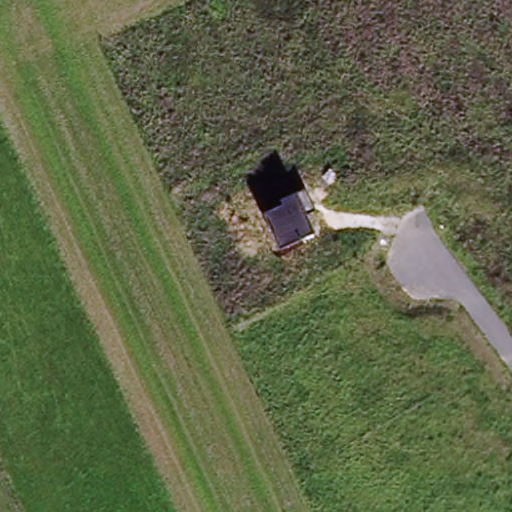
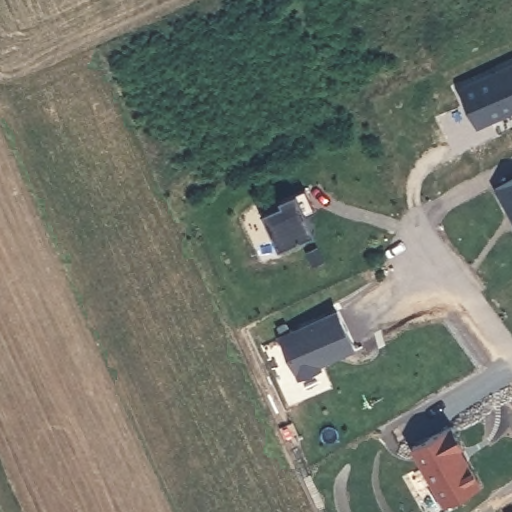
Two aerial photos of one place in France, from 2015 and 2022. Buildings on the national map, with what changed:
new [(512,111),(475,128),(457,90),(512,65),(512,111)]
new [(512,217),(495,186),(512,177),(512,217)]
unchanged [(281,204),(280,201),(297,193),(307,189),(315,210),(307,214),(315,233),(280,247),(265,211),(281,204)]
new [(312,367),(297,375),(278,334),(335,308),(352,345),(317,361),(318,365),(312,367)]
new [(450,427),(461,447),(456,450),(461,460),(465,461),(479,486),(442,507),(410,451),(450,427)]

